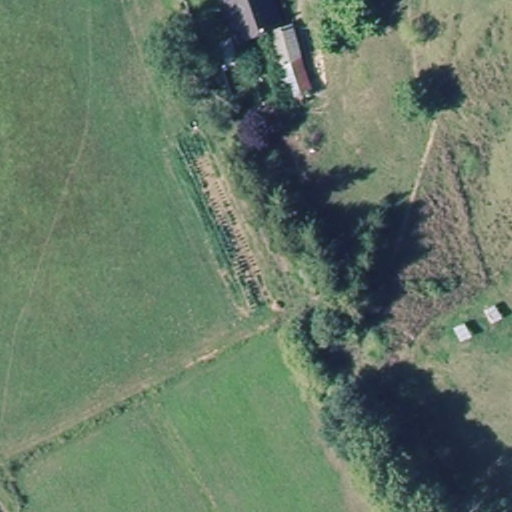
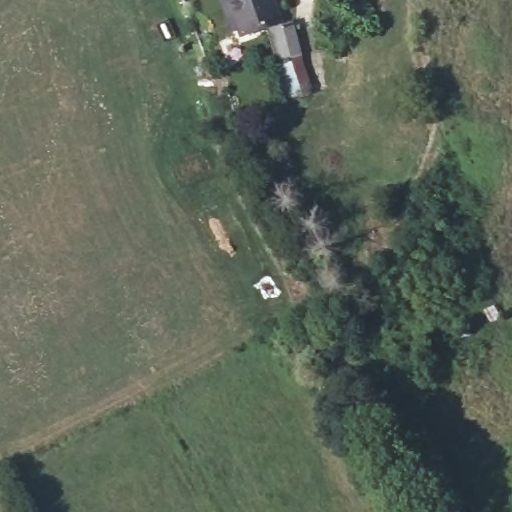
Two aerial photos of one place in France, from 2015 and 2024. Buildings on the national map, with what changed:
unchanged [(238,26),(227,28),(220,0),(273,0),(277,23),(278,32),(256,32),(239,34),(238,26)]
unchanged [(309,90),(289,94),(278,40),(301,36),(309,90)]

